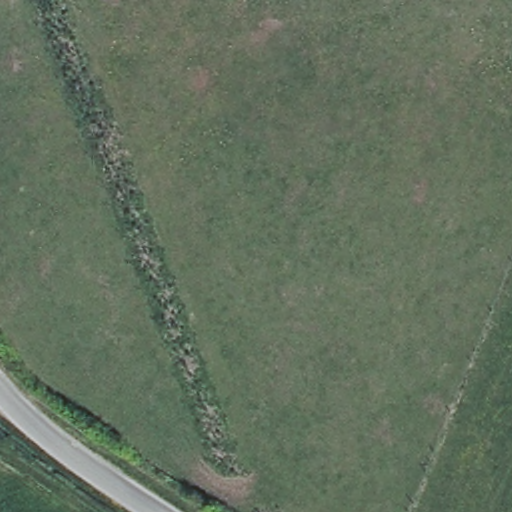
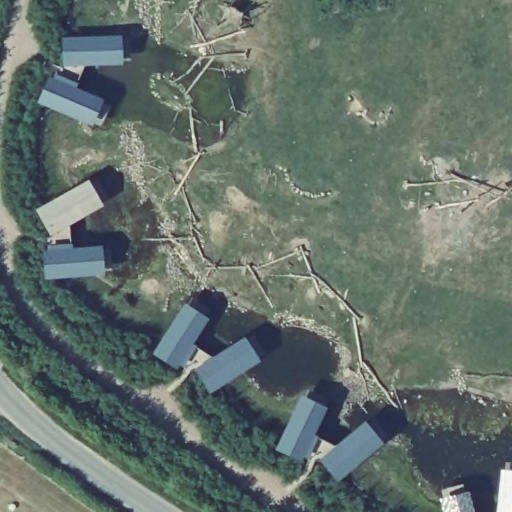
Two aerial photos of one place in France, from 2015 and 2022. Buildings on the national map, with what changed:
new [(130,59),(121,57),(120,65),(61,67),(61,37),(120,35),(130,37),(130,59)]
new [(101,126),(94,122),(93,126),(36,103),(47,77),(103,99),(110,105),(101,126)]
new [(107,197),(100,200),(102,205),(49,236),(35,209),(88,179),(89,181),(96,179),(107,197)]
new [(111,268),(102,268),(102,275),(42,280),(40,249),(101,245),(110,247),(111,268)]
new [(196,302),(212,311),(208,318),(175,369),(150,355),(184,304),(185,305),(190,299),(196,302)]
new [(264,352),(257,357),(259,361),(208,393),(193,371),(243,337),(253,335),(264,352)]
new [(327,399),(323,407),(326,409),(300,462),(273,450),(300,397),(303,397),(306,390),(327,399)]
new [(387,436),(380,441),(381,444),(337,482),(317,461),(362,420),(365,423),(372,417),(387,436)]
new [(512,512),(493,512),(498,471),(502,471),(502,461),(512,462),(512,512)]
new [(472,490),(478,512),(439,512),(436,500),(442,499),(438,490),(462,484),(467,491),(472,490)]

